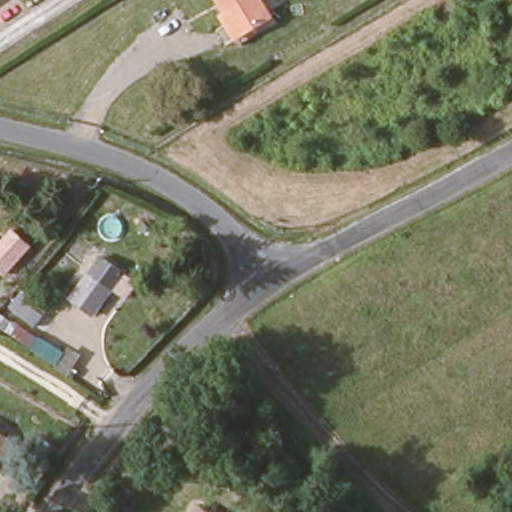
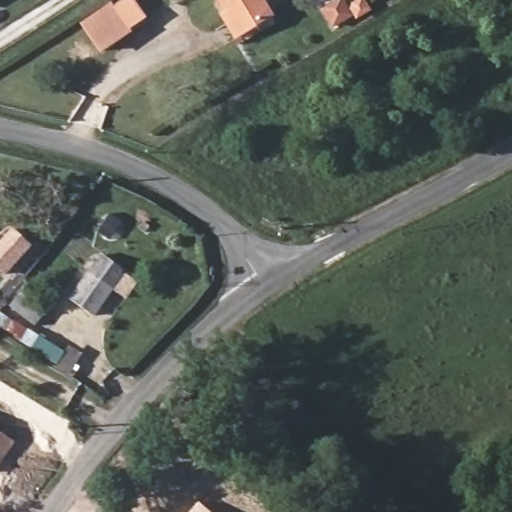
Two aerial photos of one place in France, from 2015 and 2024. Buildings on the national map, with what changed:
unchanged [(229,19),(236,15),(227,0),(269,0),(280,19),(250,37),(242,41),(229,19)]
new [(112,2),(134,34),(101,55),(80,24),(112,2)]
unchanged [(38,241),(11,279),(0,272),(0,246),(12,226),(38,241)]
unchanged [(130,273),(99,317),(69,297),(100,254),(130,273)]
unchanged [(40,306),(30,322),(5,305),(15,292),(40,306)]
unchanged [(66,351),(59,363),(30,345),(36,333),(66,351)]
unchanged [(19,445),(0,473),(0,432),(19,445)]
unchanged [(211,512),(193,512),(201,503),(211,512)]

